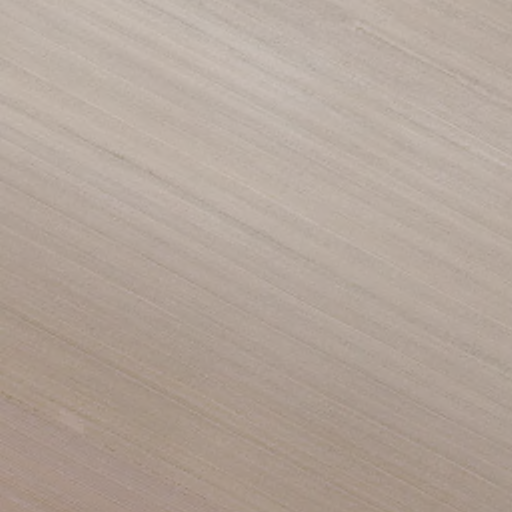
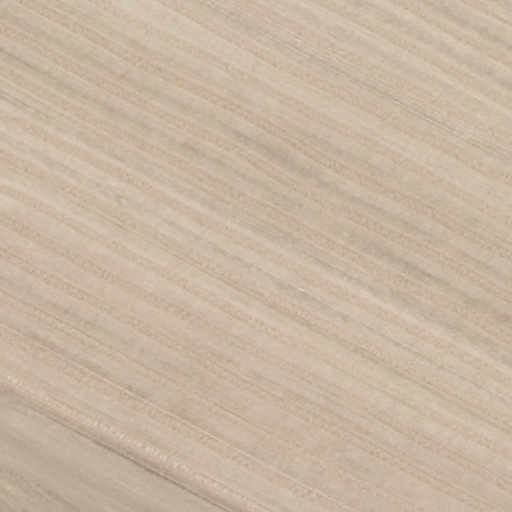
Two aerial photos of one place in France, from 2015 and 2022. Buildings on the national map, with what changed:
[]

